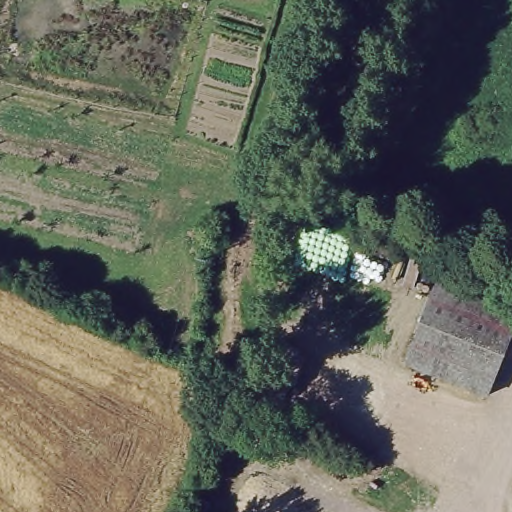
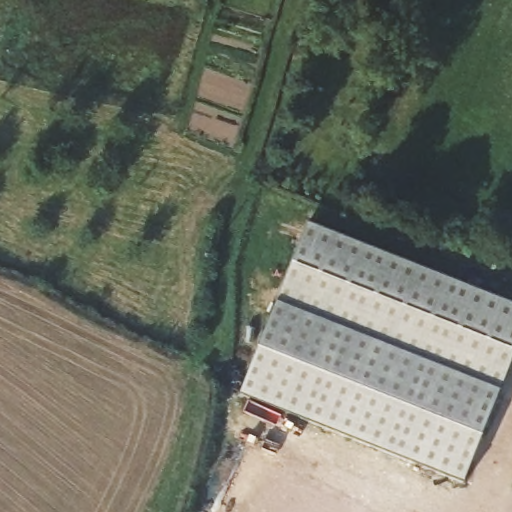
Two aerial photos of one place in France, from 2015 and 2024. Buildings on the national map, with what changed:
new [(239,394),(307,222),(512,304),(512,360),(500,390),(463,483),(239,394)]
demolished [(512,331),(478,393),(400,363),(433,275),(512,305),(512,331)]

